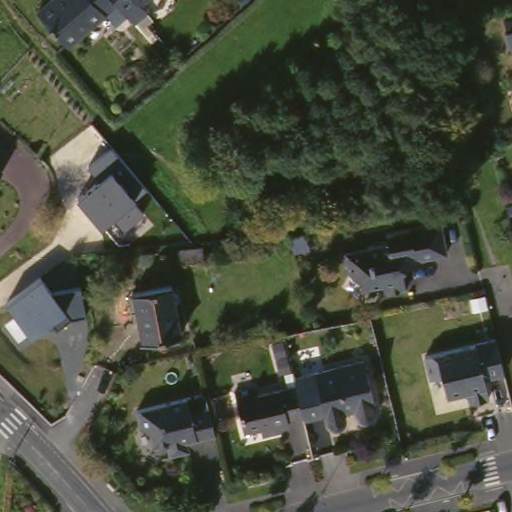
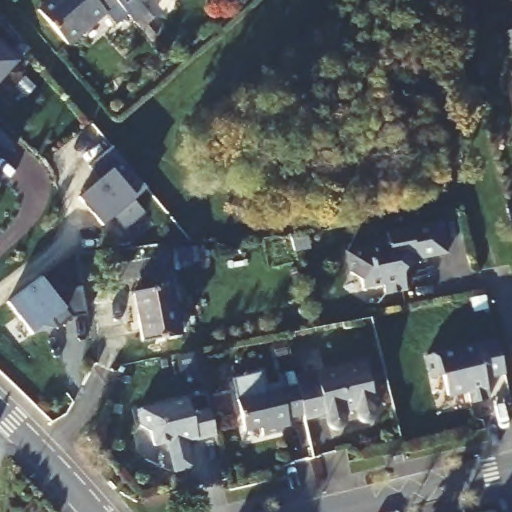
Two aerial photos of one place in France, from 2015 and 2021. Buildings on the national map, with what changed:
unchanged [(122,0),(78,37),(50,3),(53,0),(122,0)]
unchanged [(145,16),(137,6),(133,1),(132,0),(155,0),(159,5),(145,16)]
unchanged [(512,36),(509,25),(512,24),(512,36)]
new [(18,61),(0,81),(0,45),(18,61)]
unchanged [(111,147),(146,189),(136,198),(132,200),(144,214),(124,229),(114,216),(102,225),(77,196),(99,179),(88,166),(111,147)]
unchanged [(2,177),(0,180),(0,175),(2,177)]
new [(512,221),(507,200),(512,198),(512,221)]
unchanged [(374,242),(373,240),(393,236),(391,226),(446,215),(452,246),(427,251),(427,255),(413,257),(408,265),(412,283),(390,287),(388,278),(368,282),(366,273),(356,267),(352,246),(374,242)]
unchanged [(306,227),(306,229),(308,242),(292,245),(290,230),(306,227)]
unchanged [(199,250),(202,263),(176,266),(174,252),(199,250)]
unchanged [(41,277),(51,290),(80,286),(86,315),(70,317),(57,328),(39,328),(31,333),(7,303),(41,277)]
unchanged [(181,282),(181,285),(185,285),(188,300),(183,301),(189,332),(149,340),(141,290),(181,282)]
unchanged [(457,390),(453,371),(441,373),(436,351),(508,335),(512,354),(512,371),(494,375),(497,389),(498,393),(479,397),(478,393),(477,386),(457,390)]
unchanged [(344,420),(340,417),(337,415),(334,405),(312,410),(311,406),(309,406),(302,380),(304,380),(303,375),(372,360),(381,393),(378,394),(381,403),(380,408),(379,413),(370,415),(367,411),(364,407),(362,397),(350,400),(353,412),(352,415),(351,420),(344,420)]
unchanged [(302,380),(309,406),(295,410),(296,416),(288,418),(290,424),(273,428),(271,420),(256,424),(244,384),(263,379),(265,389),(302,380)]
unchanged [(210,386),(222,428),(203,434),(201,430),(192,432),(196,444),(178,450),(175,437),(161,441),(157,428),(147,423),(142,406),(210,386)]

